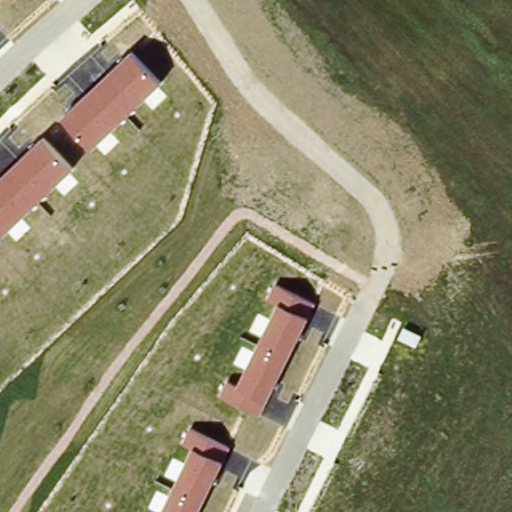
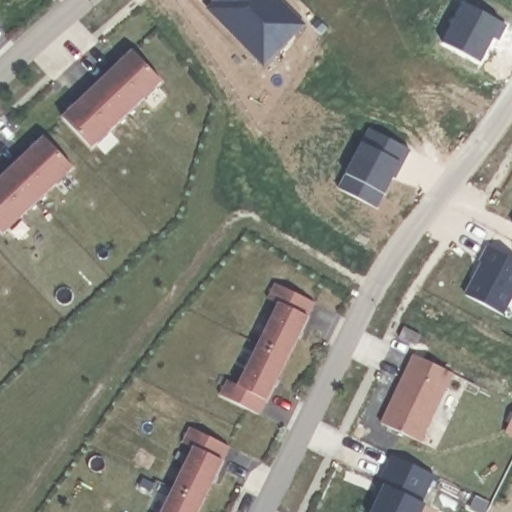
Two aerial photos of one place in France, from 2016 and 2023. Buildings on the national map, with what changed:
new [(207,8),(214,1),(213,0),(281,0),(305,23),(274,53),(262,64),(223,24),(207,8)]
new [(464,2),(507,25),(499,40),(494,38),(480,62),(442,42),(464,2)]
unchanged [(62,116),(130,50),(160,80),(92,148),(62,116)]
new [(370,128),(410,149),(402,165),(400,164),(376,209),(337,188),(370,128)]
unchanged [(0,178),(43,137),(72,167),(4,233),(0,229),(0,178)]
new [(482,264),(481,262),(489,247),(512,259),(512,297),(502,315),(465,295),(482,264)]
unchanged [(219,394),(227,379),(239,384),(279,302),(268,298),(275,283),(315,303),(260,416),(219,394)]
new [(413,355),(452,374),(420,442),(380,424),(413,355)]
new [(512,418),(512,434),(505,431),(512,418)]
unchanged [(195,448),(183,442),(190,428),(232,447),(199,512),(163,512),(195,448)]
new [(378,498),(371,495),(390,456),(434,474),(422,503),(425,504),(421,512),(372,512),(378,498)]

